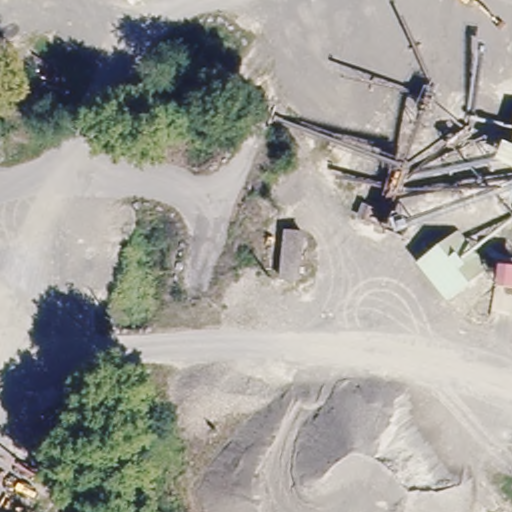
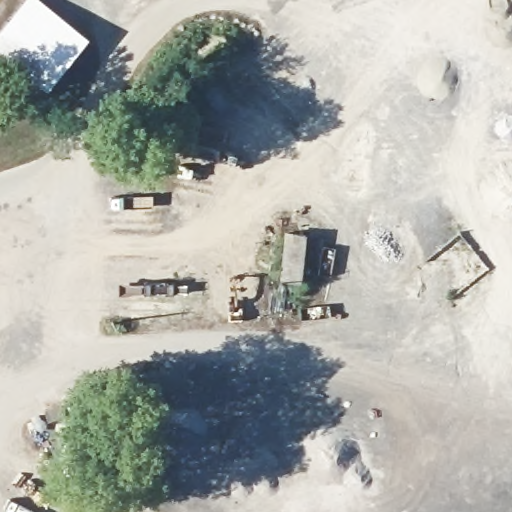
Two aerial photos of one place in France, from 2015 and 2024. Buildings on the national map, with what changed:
new [(89,37),(46,91),(0,56),(0,31),(24,0),(42,0),(89,37)]
demolished [(506,142),(512,146),(512,169),(499,163),(506,142)]
demolished [(477,286),(449,302),(418,259),(450,243),(477,286)]

